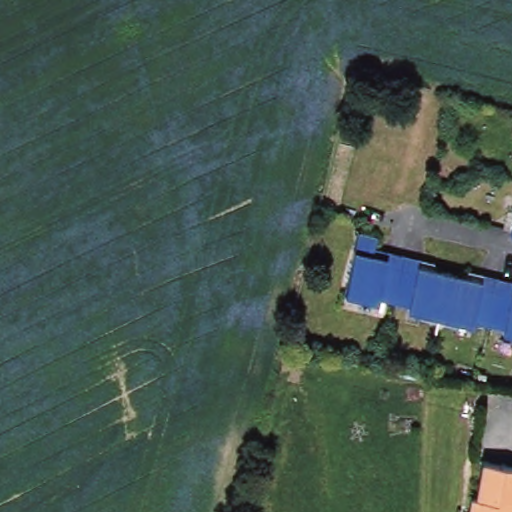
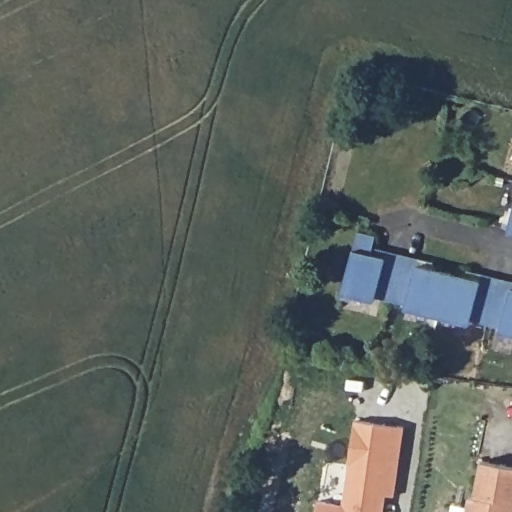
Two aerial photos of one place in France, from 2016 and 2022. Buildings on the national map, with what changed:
unchanged [(502,329),(501,323),(439,307),(438,313),(406,307),(408,300),(377,293),(375,298),(344,291),(359,230),(378,233),(375,248),(422,259),(438,263),(442,273),(460,278),(472,271),(486,275),(512,282),(512,332),(502,329)]
new [(394,493),(386,492),(383,512),(318,512),(319,499),(344,502),(356,419),(404,426),(394,493)]
unchanged [(477,464),(512,471),(512,512),(461,512),(462,503),(469,504),(477,464)]

